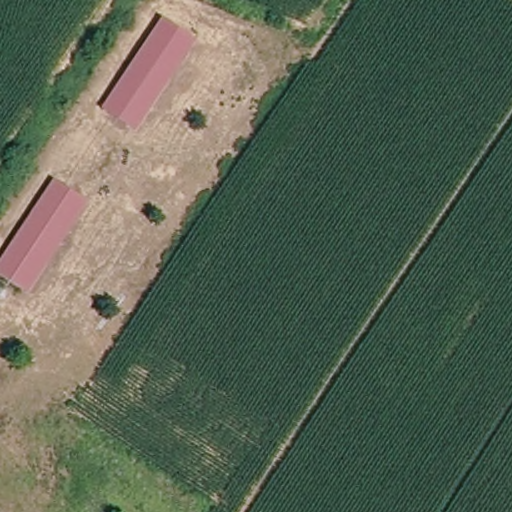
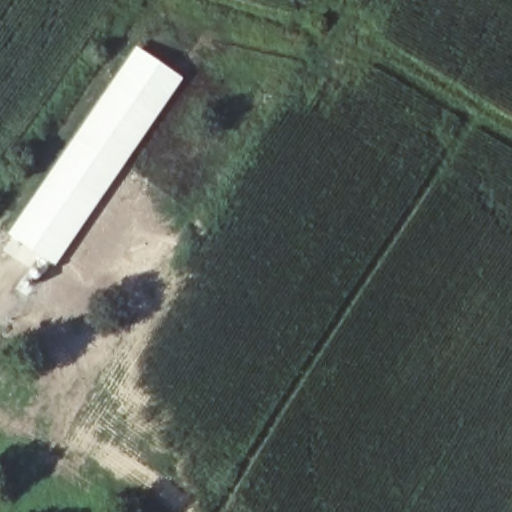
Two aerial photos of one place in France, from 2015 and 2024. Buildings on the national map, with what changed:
demolished [(104,107),(162,18),(196,43),(135,133),(104,107)]
new [(47,171),(134,45),(182,78),(53,266),(5,235),(47,171)]
demolished [(0,259),(51,180),(86,200),(24,294),(0,278),(0,259)]

